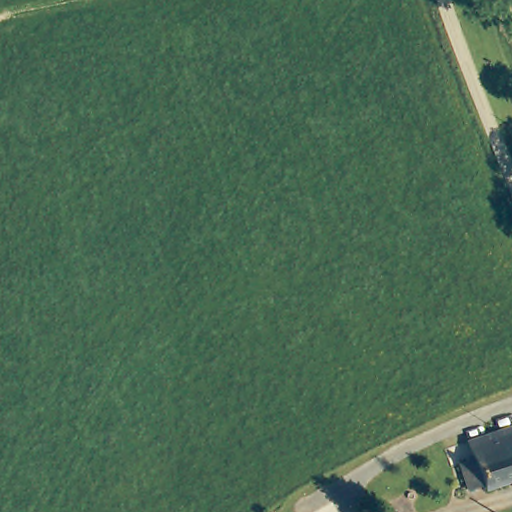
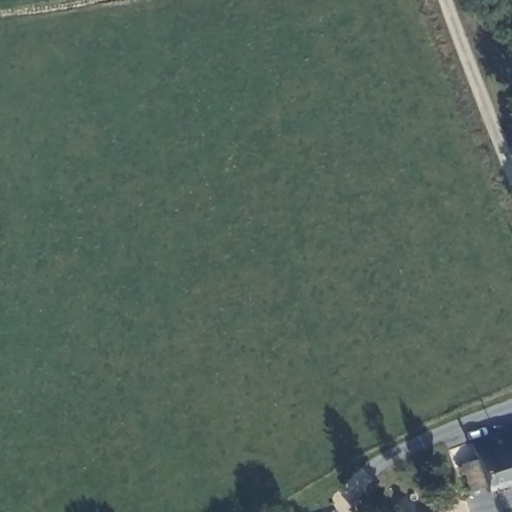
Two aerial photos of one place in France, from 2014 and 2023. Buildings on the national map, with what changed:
unchanged [(482,457),(477,444),(512,431),(512,481),(494,487),(492,481),(479,488),(469,463),(482,457)]

